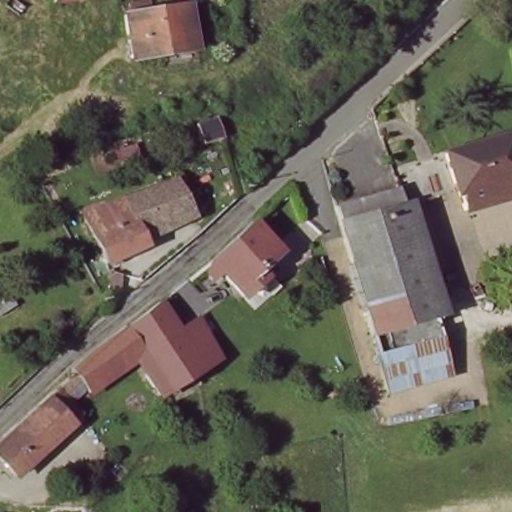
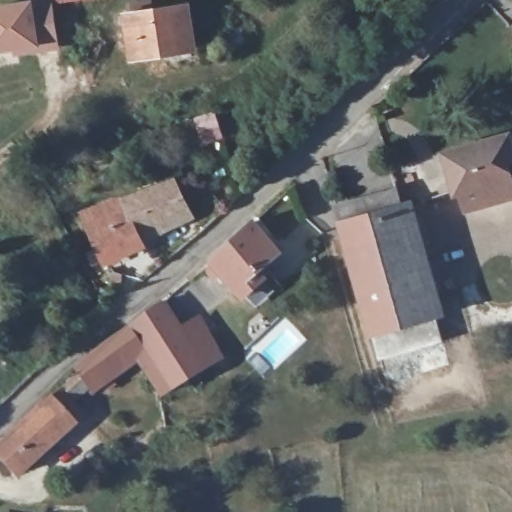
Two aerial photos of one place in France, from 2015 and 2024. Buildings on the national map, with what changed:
new [(0,53),(0,5),(33,0),(53,0),(54,4),(60,49),(14,56),(13,51),(0,53)]
unchanged [(53,0),(74,0),(54,4),(53,0)]
unchanged [(192,48),(131,59),(124,15),(130,14),(128,3),(141,0),(147,0),(149,11),(185,4),(192,48)]
unchanged [(467,210),(461,188),(454,189),(444,153),(509,134),(512,148),(512,156),(506,158),(512,180),(512,196),(489,203),(467,210)]
unchanged [(146,243),(107,261),(84,209),(175,179),(194,216),(144,239),(146,243)]
unchanged [(337,209),(397,192),(403,209),(342,225),(337,209)]
unchanged [(403,209),(434,319),(372,337),(342,225),(403,209)]
unchanged [(250,216),(279,245),(260,265),(231,237),(250,216)]
unchanged [(267,272),(262,278),(261,279),(266,285),(259,293),(253,299),(210,258),(231,237),(260,265),(267,272)]
unchanged [(100,280),(112,275),(116,292),(107,296),(100,280)]
unchanged [(219,351),(223,356),(204,368),(191,346),(154,369),(142,348),(128,324),(163,298),(181,329),(199,318),(212,339),(219,351)]
unchanged [(109,373),(105,368),(81,387),(72,377),(78,371),(74,366),(85,355),(128,324),(142,348),(109,373)]
unchanged [(191,346),(204,368),(163,394),(147,373),(154,369),(191,346)]
unchanged [(0,472),(0,446),(47,405),(55,398),(76,421),(68,429),(8,481),(0,472)]

